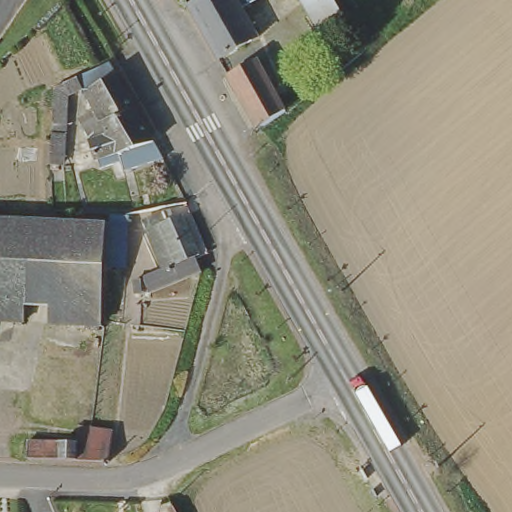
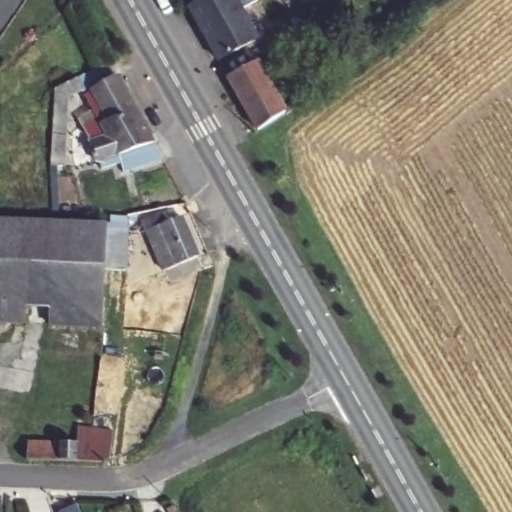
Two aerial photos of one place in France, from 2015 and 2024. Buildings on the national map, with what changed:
unchanged [(190,8),(203,0),(259,0),(260,1),(245,9),(260,39),(220,62),(190,8)]
unchanged [(347,22),(322,34),(303,0),(335,0),(347,22)]
unchanged [(260,63),(289,117),(260,133),(230,79),(260,63)]
unchanged [(100,162),(77,168),(76,158),(95,152),(92,142),(89,128),(100,121),(94,111),(87,97),(85,93),(77,95),(72,82),(86,76),(112,64),(112,65),(120,79),(155,145),(159,153),(164,163),(125,173),(122,163),(102,169),(100,162)]
unchanged [(59,88),(72,82),(67,168),(55,172),(57,130),(59,88)]
unchanged [(142,284),(167,272),(152,234),(147,224),(168,215),(172,225),(185,219),(202,258),(199,259),(204,272),(176,285),(149,297),(142,284)]
unchanged [(34,305),(32,329),(0,327),(0,227),(107,232),(108,221),(129,222),(127,249),(127,275),(105,274),(103,327),(102,333),(49,330),(50,305),(34,305)]
unchanged [(79,446),(80,431),(92,432),(113,433),(112,448),(110,463),(29,460),(30,443),(79,446)]

